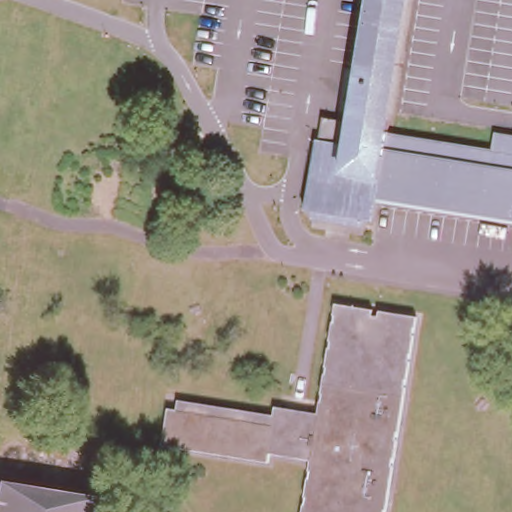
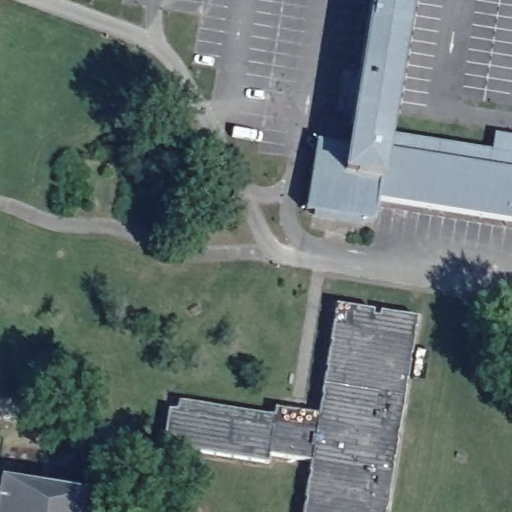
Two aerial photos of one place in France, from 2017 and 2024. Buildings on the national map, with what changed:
unchanged [(376,215),(307,204),(318,138),(321,138),(324,113),(352,118),(370,0),(411,0),(391,128),(494,146),(497,130),(512,133),(512,215),(380,194),(376,215)]
unchanged [(266,452),(272,414),(273,402),(319,410),(337,302),(418,316),(386,512),(300,512),(309,459),(266,452)]
unchanged [(155,444),(160,404),(174,406),(175,399),(272,414),(266,452),(264,461),(155,444)]
unchanged [(0,512),(0,479),(1,476),(94,493),(90,512),(0,512)]

